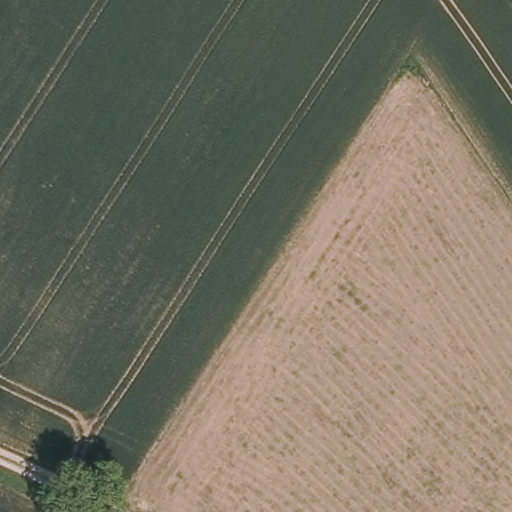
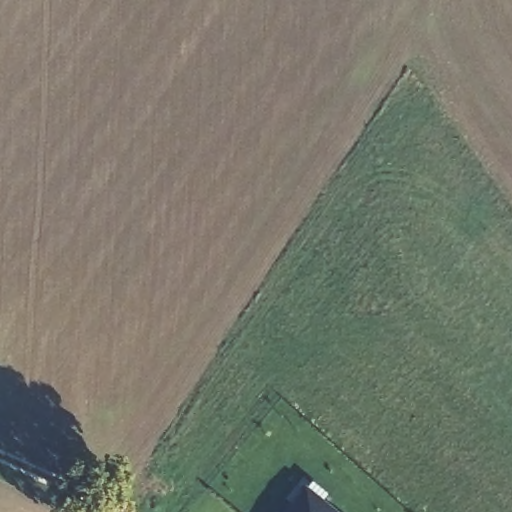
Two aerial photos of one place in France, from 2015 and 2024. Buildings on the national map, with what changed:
new [(304,489),(320,503),(330,512),(285,512),(292,504),(304,489)]

